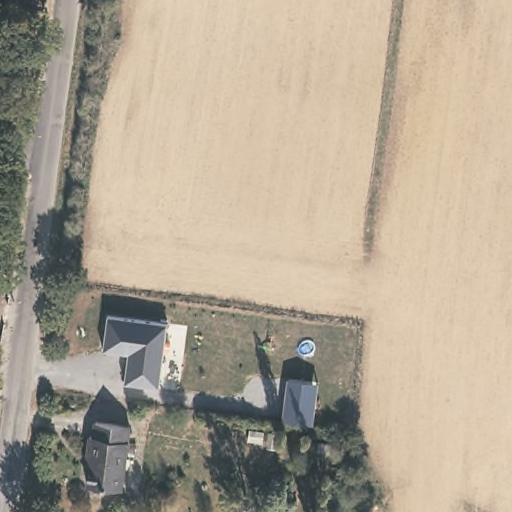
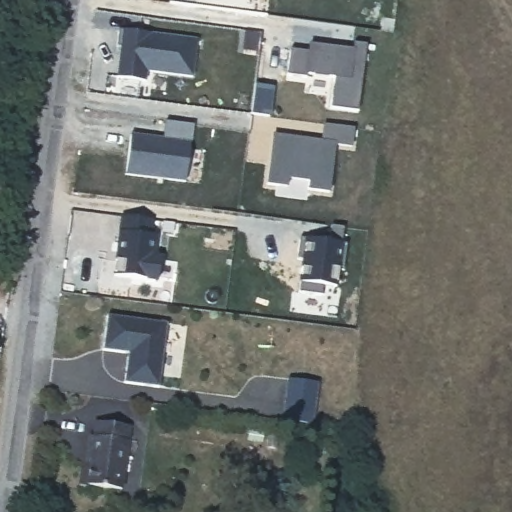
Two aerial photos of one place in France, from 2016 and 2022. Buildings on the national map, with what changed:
new [(122,47),(116,46),(119,29),(123,30),(197,39),(192,78),(146,72),(146,80),(116,77),(122,47)]
new [(290,50),(308,52),(310,43),(353,49),(353,43),(365,45),(364,52),(357,111),(331,108),(335,77),(306,74),(305,78),(286,75),(290,50)]
new [(131,134),(163,138),(165,122),(195,126),(192,144),(189,144),(185,183),(126,176),(131,134)]
new [(274,134),(322,141),(323,124),(353,128),(351,148),(336,146),(329,194),(307,192),(308,182),(288,179),(287,189),(266,186),(274,134)]
new [(118,232),(121,217),(152,221),(149,236),(155,236),(153,256),(161,258),(158,282),(112,276),(118,232)]
new [(301,282),(298,282),(302,259),(296,258),(298,239),(303,241),(304,237),(328,242),(330,226),(343,228),(342,245),(346,245),(342,271),(338,271),(337,288),(322,286),(321,295),(300,292),(301,282)]
unchanged [(161,386),(124,382),(127,352),(105,350),(109,317),(169,326),(161,386)]
unchanged [(312,424),(283,422),(290,381),(318,383),(312,424)]
unchanged [(129,430),(121,492),(89,489),(92,461),(87,461),(90,439),(94,439),(96,426),(129,430)]

